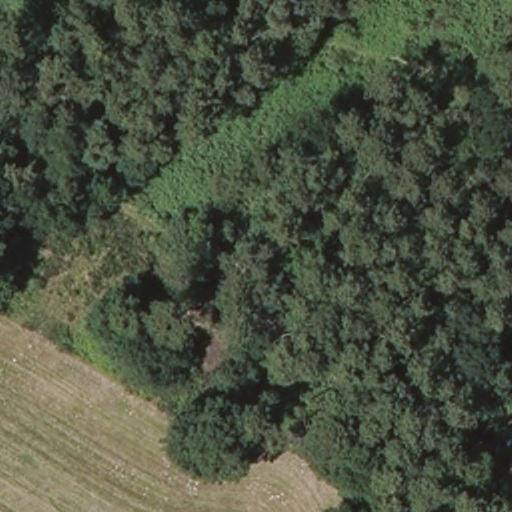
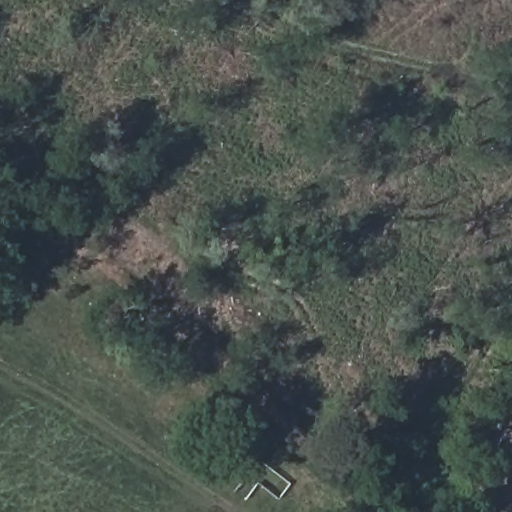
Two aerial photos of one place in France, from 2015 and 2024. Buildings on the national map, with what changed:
[]

